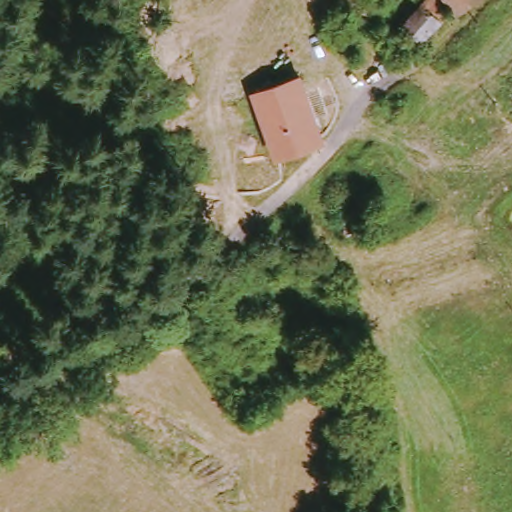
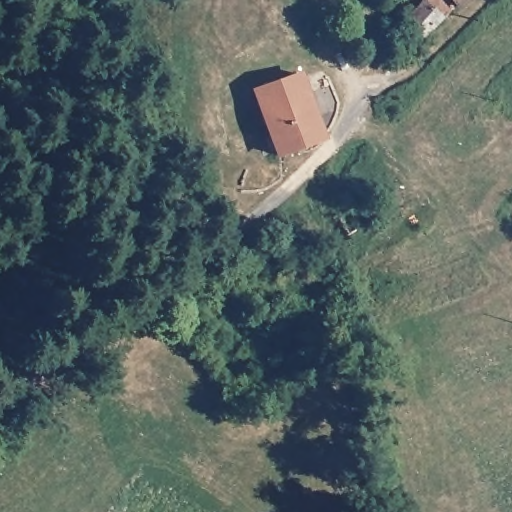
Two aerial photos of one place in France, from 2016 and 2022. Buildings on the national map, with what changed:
unchanged [(407,20),(426,0),(453,0),(457,4),(433,22),(422,33),(407,20)]
unchanged [(461,1),(461,0),(462,0),(461,1)]
unchanged [(251,90),(302,73),(326,142),(275,160),(251,90)]
unchanged [(355,185),(375,221),(350,237),(331,203),(355,185)]

